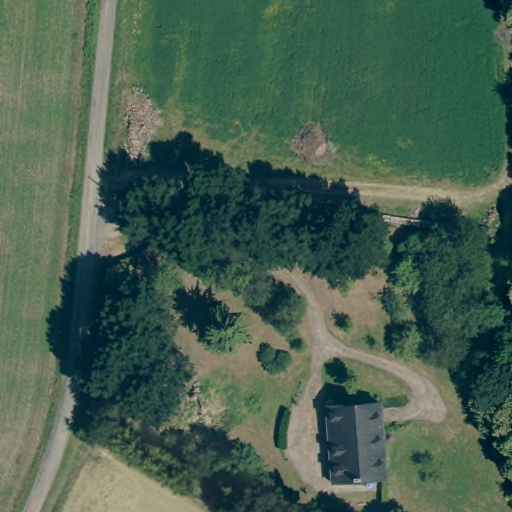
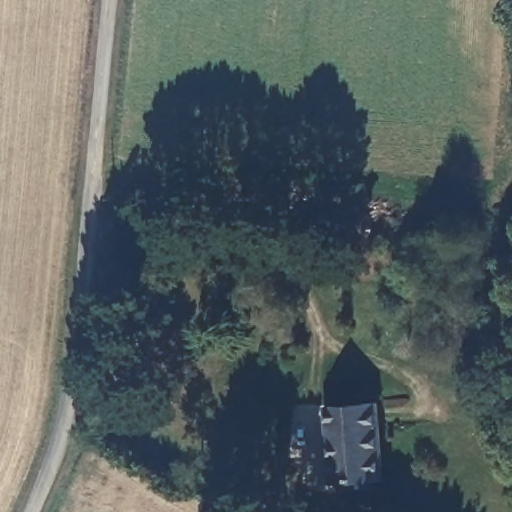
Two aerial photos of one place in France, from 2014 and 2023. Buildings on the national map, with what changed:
unchanged [(331,434),(329,407),(336,406),(381,404),(381,425),(384,475),(333,477),(331,434)]

